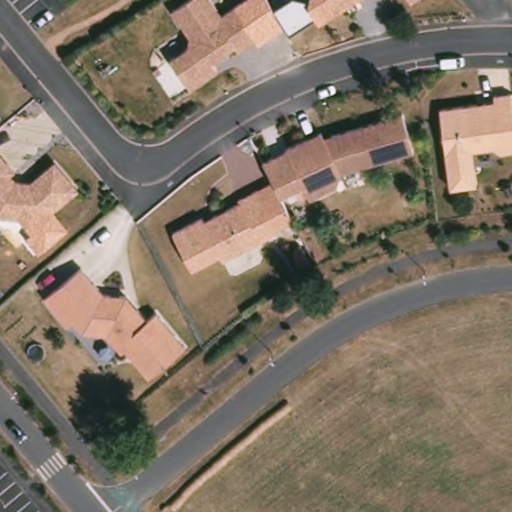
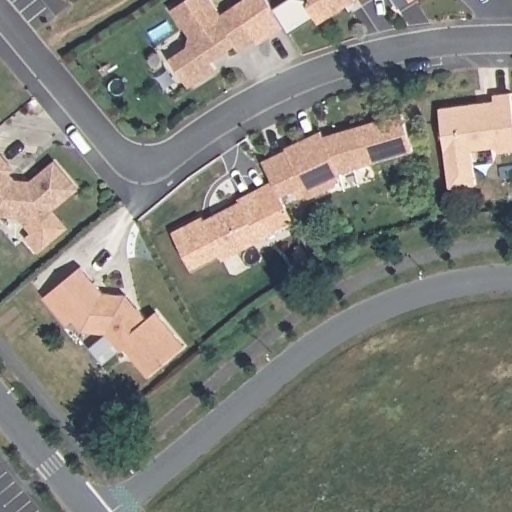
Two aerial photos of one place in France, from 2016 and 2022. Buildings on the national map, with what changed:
unchanged [(183,92),(164,63),(188,47),(190,37),(172,10),(186,0),(211,0),(221,16),(235,7),(256,39),(231,55),(229,50),(215,59),(205,66),(210,74),(183,92)]
unchanged [(306,4),(307,0),(351,0),(313,24),(302,7),(306,4)]
unchanged [(405,0),(408,0),(406,1),(405,0)]
unchanged [(488,96),(505,93),(512,142),(512,150),(495,152),(488,147),(440,153),(435,109),(471,104),(479,102),(490,102),(488,96)]
unchanged [(281,147),(316,131),(322,143),(328,141),(326,134),(397,114),(408,151),(335,172),(331,185),(305,197),(281,147)]
unchanged [(0,214),(0,154),(14,170),(9,174),(15,181),(31,182),(55,162),(78,189),(42,218),(0,214)]
unchanged [(238,200),(273,182),(293,221),(276,230),(277,232),(222,260),(220,255),(192,269),(172,232),(202,217),(205,221),(213,216),(240,202),(238,200)]
unchanged [(120,348),(116,352),(101,333),(80,332),(81,323),(70,322),(68,320),(62,325),(39,297),(75,267),(97,293),(121,296),(131,308),(141,320),(150,312),(180,347),(143,377),(120,348)]

